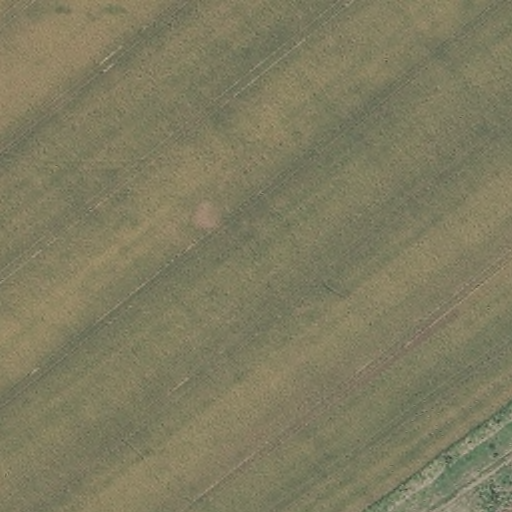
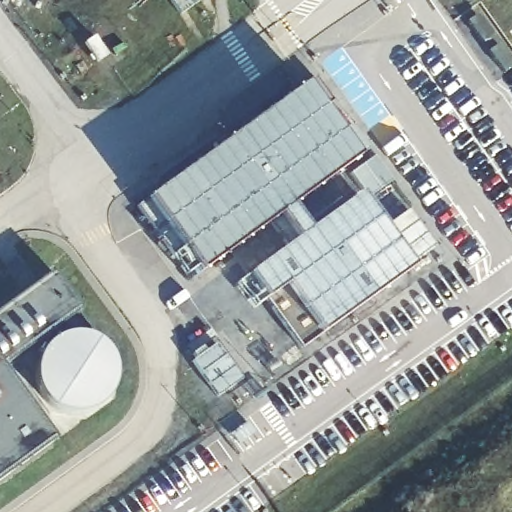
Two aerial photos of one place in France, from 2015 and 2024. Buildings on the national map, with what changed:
new [(477,13),(493,35),(483,42),(467,20),(477,13)]
new [(500,45),(512,60),(512,69),(506,74),(490,52),(500,45)]
new [(305,84),(358,157),(200,272),(147,199),(305,84)]
new [(365,190),(418,261),(305,347),(269,297),(258,305),(240,280),(365,190)]
new [(79,305),(0,356),(0,314),(57,273),(79,305)]
new [(191,359),(215,341),(242,380),(219,397),(191,359)]
new [(0,470),(0,365),(50,435),(0,470)]

